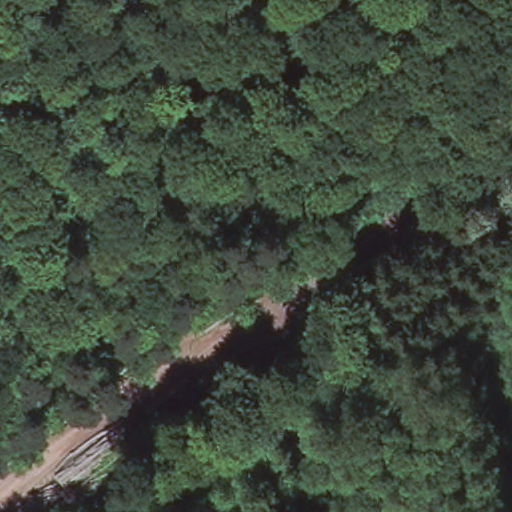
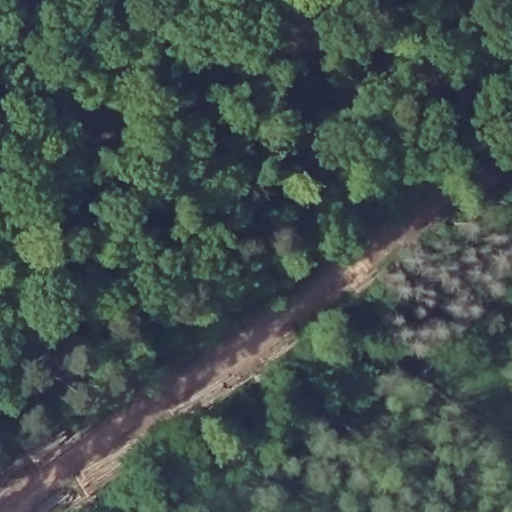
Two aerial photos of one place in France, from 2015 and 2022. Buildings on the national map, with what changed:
unchanged [(488,155),(475,135),(512,110),(512,139),(488,155)]

